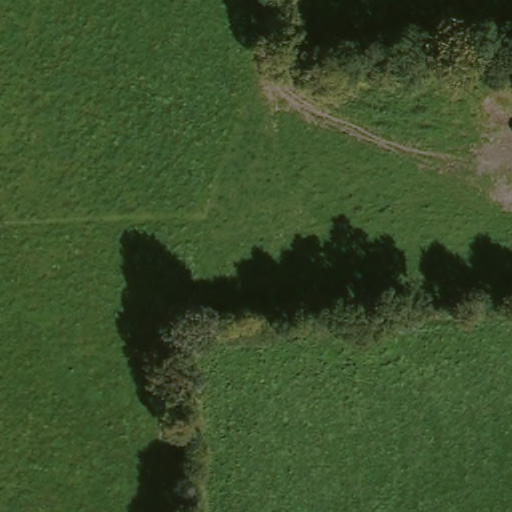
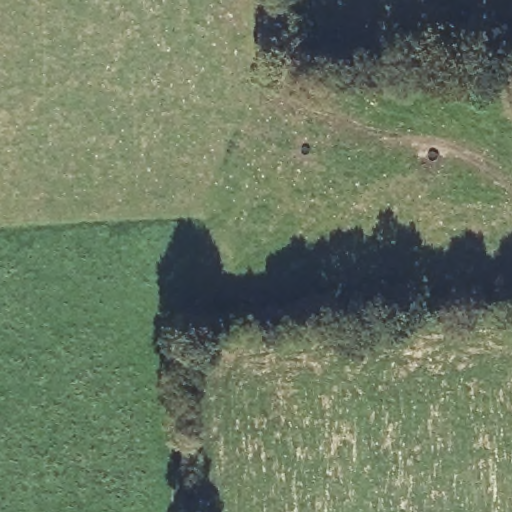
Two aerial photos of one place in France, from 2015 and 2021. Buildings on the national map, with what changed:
[]

